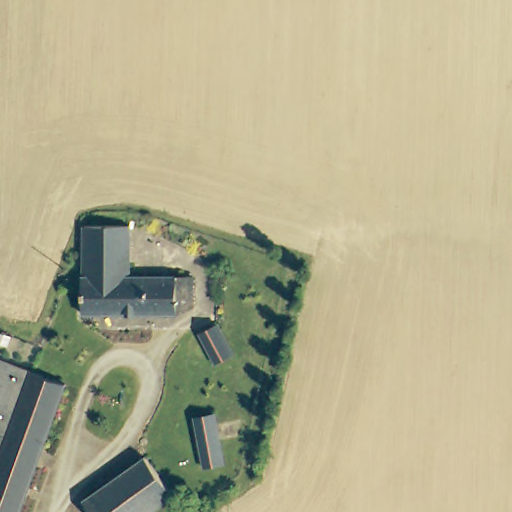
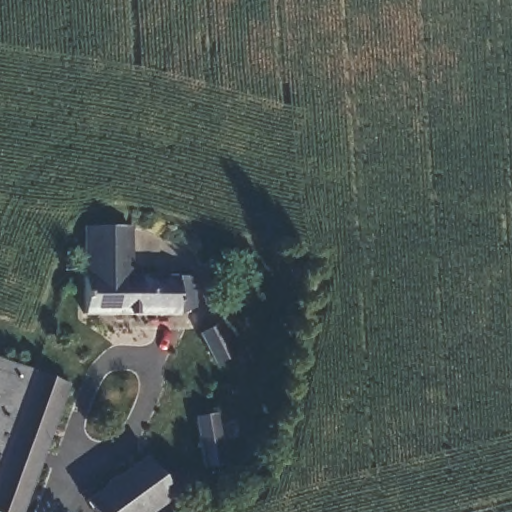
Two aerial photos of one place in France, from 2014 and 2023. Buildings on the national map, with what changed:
unchanged [(85,276),(85,225),(127,225),(127,276),(85,276)]
unchanged [(183,311),(81,312),(82,276),(85,276),(127,276),(170,277),(190,277),(191,307),(183,311)]
unchanged [(195,334),(214,326),(229,357),(212,365),(195,334)]
unchanged [(64,384),(18,512),(0,506),(0,361),(32,372),(64,384)]
unchanged [(204,464),(194,415),(212,411),(222,461),(204,464)]
unchanged [(143,512),(99,512),(86,495),(146,454),(171,491),(143,512)]

